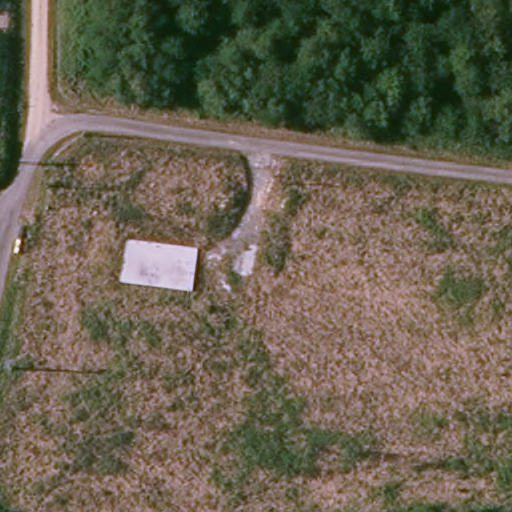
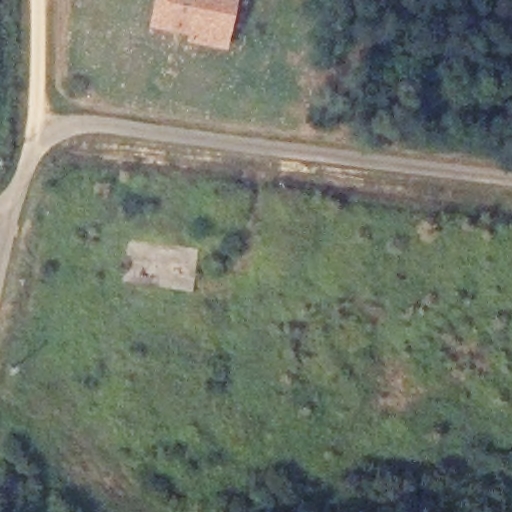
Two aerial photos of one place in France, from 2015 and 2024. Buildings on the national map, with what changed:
new [(226,49),(187,42),(189,34),(149,26),(154,0),(235,0),(226,49)]

